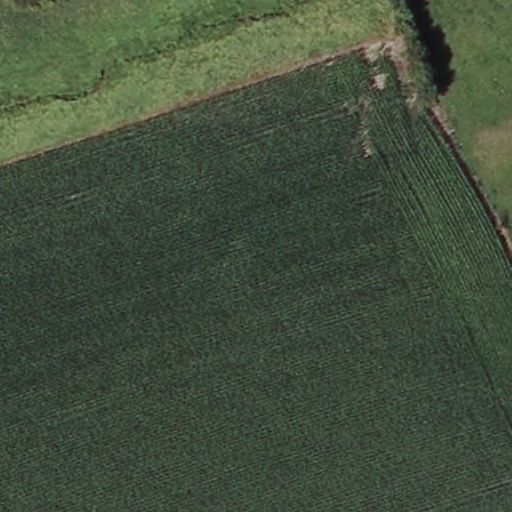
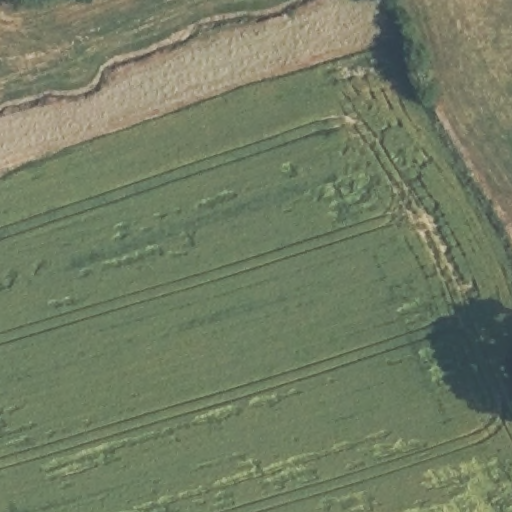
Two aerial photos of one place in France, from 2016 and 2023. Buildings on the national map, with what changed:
[]

